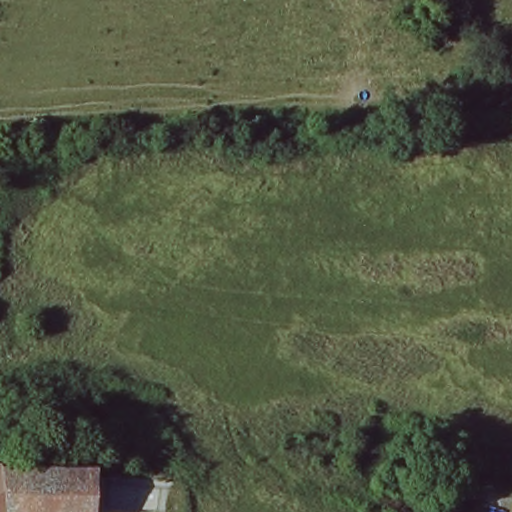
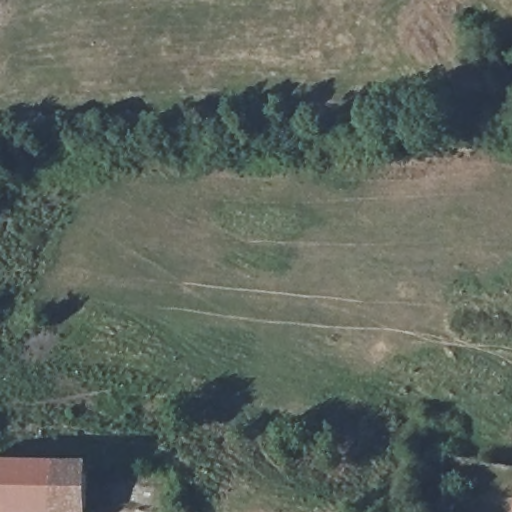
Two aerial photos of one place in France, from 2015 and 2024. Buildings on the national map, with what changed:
unchanged [(0,512),(0,469),(7,469),(53,470),(52,512),(0,512)]
unchanged [(76,471),(84,471),(84,512),(52,512),(53,470),(62,471),(76,471)]

